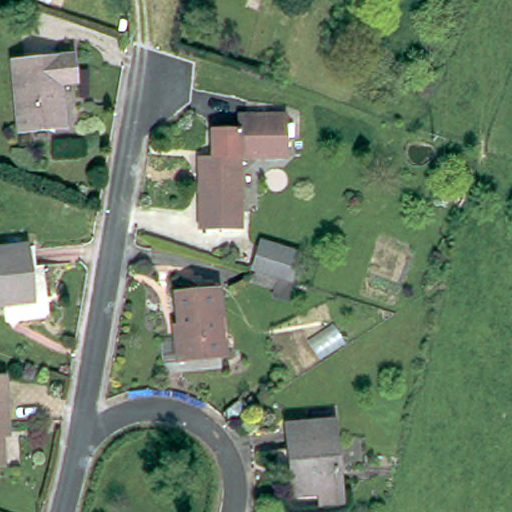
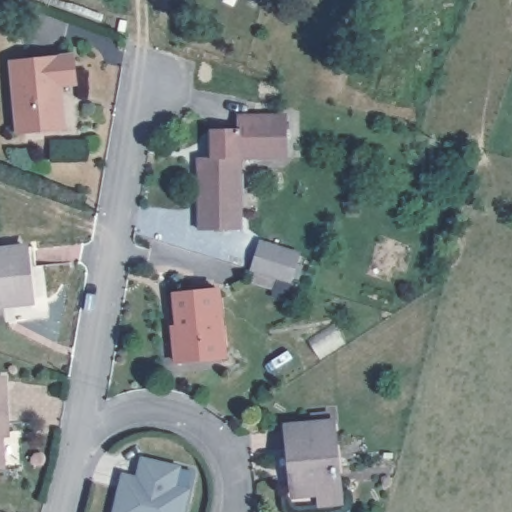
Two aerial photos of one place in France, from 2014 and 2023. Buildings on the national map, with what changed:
unchanged [(127,32),(124,43),(118,42),(120,30),(127,32)]
unchanged [(75,59),(79,82),(62,84),(67,127),(25,131),(18,64),(75,59)]
unchanged [(205,227),(204,158),(217,157),(217,130),(244,130),(244,125),(244,117),(290,116),(290,139),(290,156),(245,157),(247,229),(205,229),(205,227)]
unchanged [(259,270),(262,260),(258,259),(267,233),(304,244),(295,270),(297,272),(292,289),(277,284),(280,276),(259,270)]
unchanged [(30,274),(32,302),(0,305),(0,250),(26,247),(34,247),(36,265),(29,267),(30,274)]
unchanged [(184,324),(180,293),(224,288),(230,357),(182,361),(179,324),(184,324)]
unchanged [(7,434),(1,434),(3,464),(0,464),(0,378),(4,378),(7,434)]
unchanged [(315,424),(330,423),(330,431),(334,431),(340,499),(295,503),(289,435),(288,435),(315,433),(315,424)]
new [(140,457),(182,467),(177,487),(190,489),(185,512),(114,512),(122,473),(137,476),(140,457)]

